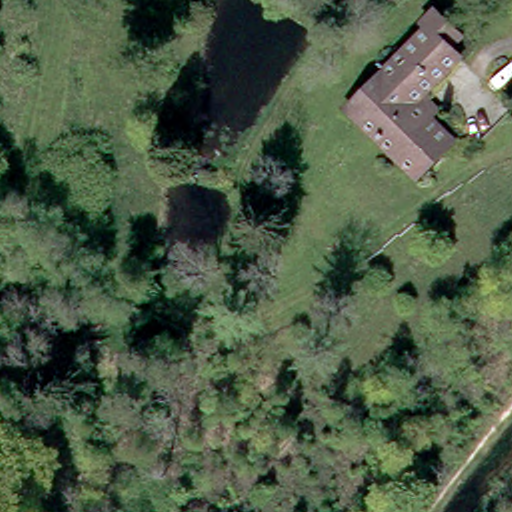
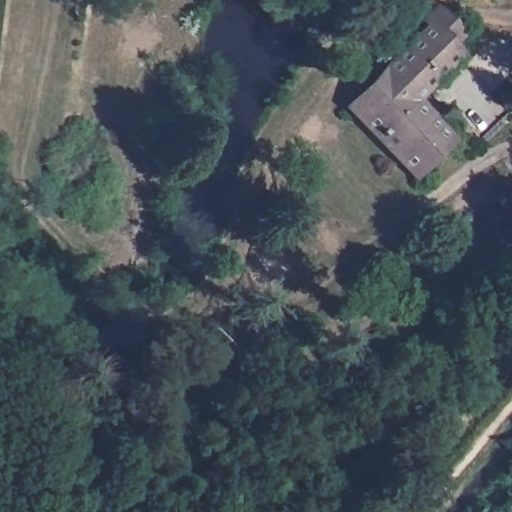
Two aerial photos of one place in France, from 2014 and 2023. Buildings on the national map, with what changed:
unchanged [(373,75),(380,68),(427,25),(421,19),(434,7),(459,34),(447,45),(457,55),(418,91),(434,107),(425,115),(447,138),(437,147),(410,172),(405,167),(353,112),(344,103),(373,75)]

